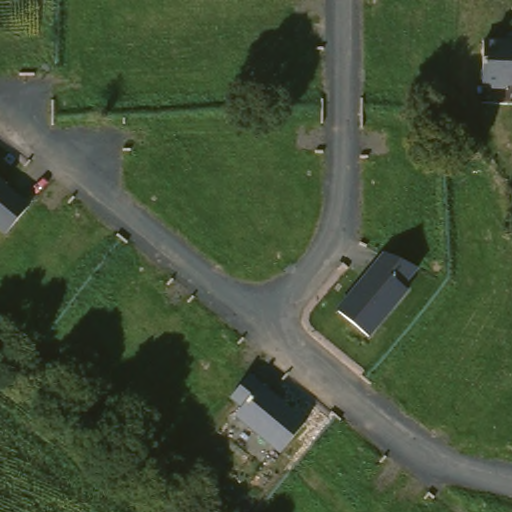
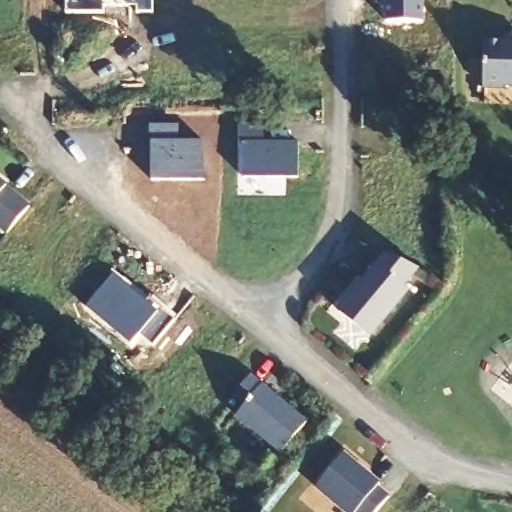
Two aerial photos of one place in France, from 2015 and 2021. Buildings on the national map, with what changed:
new [(64,0),(152,0),(152,11),(135,11),(136,5),(103,5),(103,11),(64,11),(64,0)]
new [(387,0),(422,0),(422,20),(387,20),(387,0)]
unchanged [(509,84),(509,87),(488,86),(489,40),(508,41),(508,44),(512,44),(512,84),(509,84)]
new [(264,120),(263,138),(299,138),(298,175),(240,176),(239,139),(223,138),(223,121),(264,120)]
new [(149,123),(172,123),(172,139),(203,139),(203,179),(152,179),(152,140),(149,140),(149,123)]
unchanged [(0,226),(0,182),(3,184),(4,185),(31,206),(9,232),(0,226)]
unchanged [(404,288),(409,291),(370,335),(339,310),(386,252),(420,269),(404,288)]
new [(138,306),(142,302),(154,312),(169,324),(154,341),(140,329),(132,339),(87,302),(106,279),(138,306)]
demolished [(139,408),(97,376),(117,350),(160,384),(139,408)]
unchanged [(281,454),(236,416),(243,407),(231,398),(250,377),(307,422),(281,454)]
new [(378,481),(377,486),(389,496),(377,512),(346,512),(316,486),(344,453),(378,481)]

